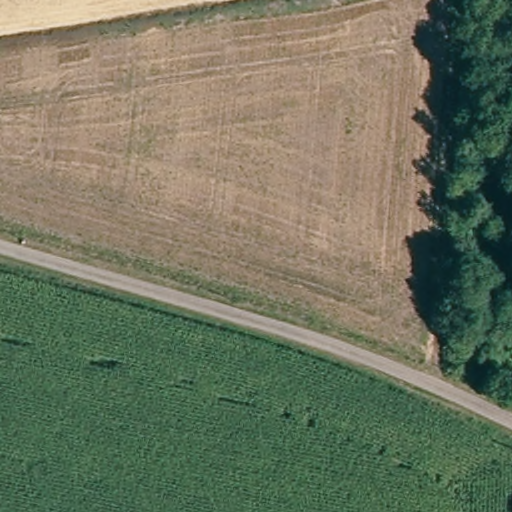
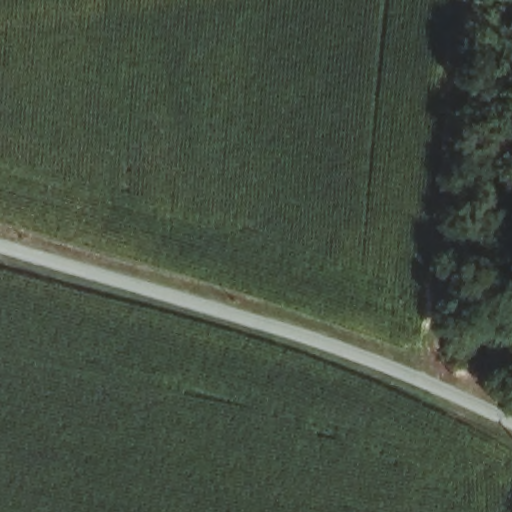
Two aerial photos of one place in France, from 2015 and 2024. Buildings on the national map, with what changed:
[]

